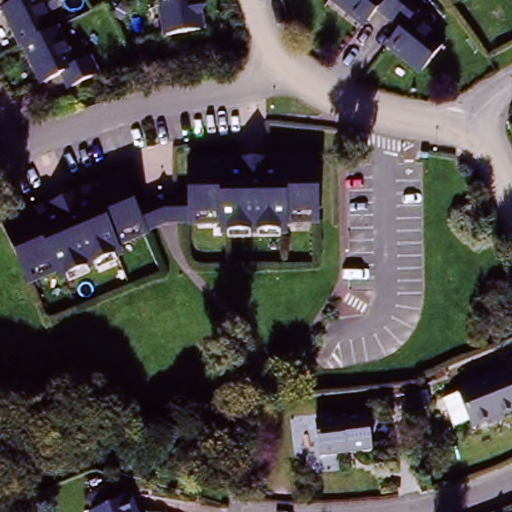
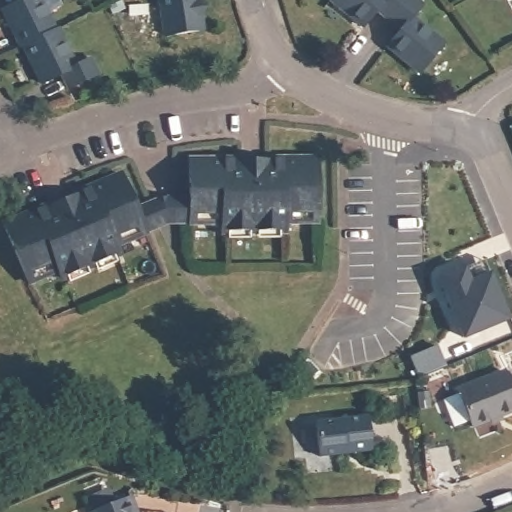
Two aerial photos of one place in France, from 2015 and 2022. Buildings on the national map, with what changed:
unchanged [(17,46),(0,16),(0,7),(13,0),(34,0),(51,30),(17,46)]
unchanged [(207,3),(201,11),(202,25),(168,29),(164,0),(202,0),(207,3)]
unchanged [(334,0),(405,0),(390,22),(377,12),(365,27),(333,1),(334,0)]
unchanged [(421,5),(412,17),(445,44),(422,74),(388,47),(401,31),(390,22),(405,0),(415,0),(421,5)]
unchanged [(70,65),(83,58),(91,74),(61,87),(53,72),(36,81),(17,46),(51,30),(70,65)]
unchanged [(282,227),(218,229),(217,220),(187,220),(186,196),(186,160),(236,158),(262,157),(312,157),(314,219),(282,219),(282,227)]
unchanged [(120,173),(134,206),(144,228),(113,242),(117,250),(57,275),(53,265),(24,277),(0,223),(0,222),(47,202),(70,194),(120,173)]
unchanged [(187,220),(161,221),(144,228),(134,206),(156,197),(186,196),(187,220)]
new [(466,267),(472,283),(491,274),(511,321),(463,341),(437,278),(466,267)]
unchanged [(471,430),(457,393),(502,376),(512,400),(512,414),(471,430)]
unchanged [(371,456),(318,462),(314,427),(367,421),(371,456)]
unchanged [(135,510),(131,511),(131,512),(88,512),(127,493),(135,510)]

